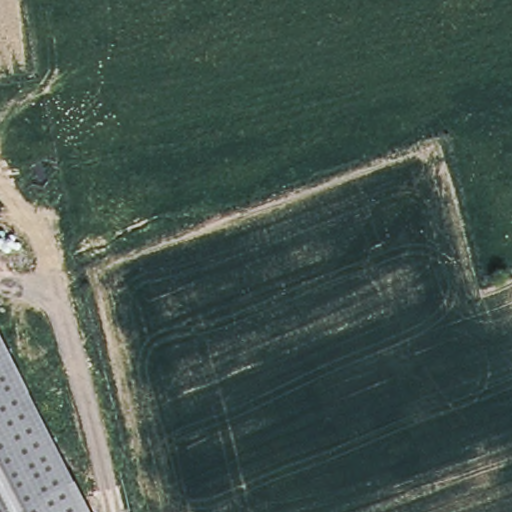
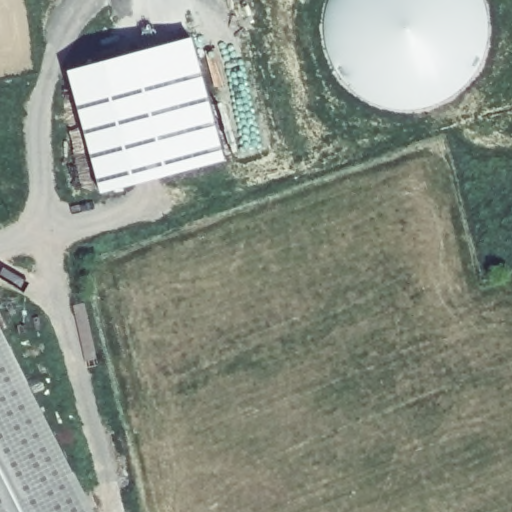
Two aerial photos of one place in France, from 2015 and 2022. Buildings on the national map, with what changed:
new [(484,65),(476,79),(466,92),(452,103),(438,110),(422,115),(406,116),(390,115),(374,110),(360,103),(347,92),(336,79),(329,65),(324,49),(322,33),(324,16),(329,1),(329,0),(483,0),(484,1),(489,16),(490,33),(489,49),(484,65)]
new [(189,36),(222,158),(101,192),(67,70),(189,36)]
unchanged [(0,329),(95,512),(0,512),(0,329)]

